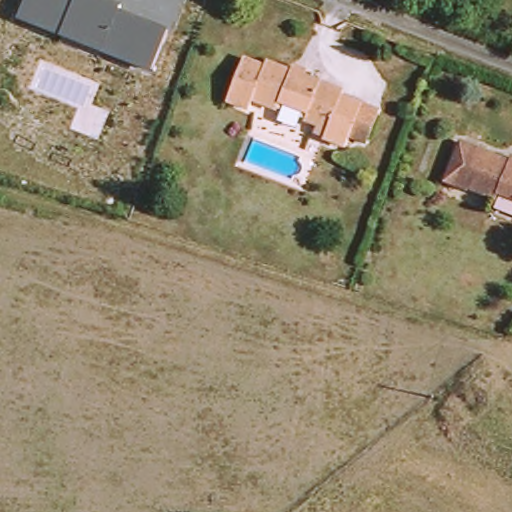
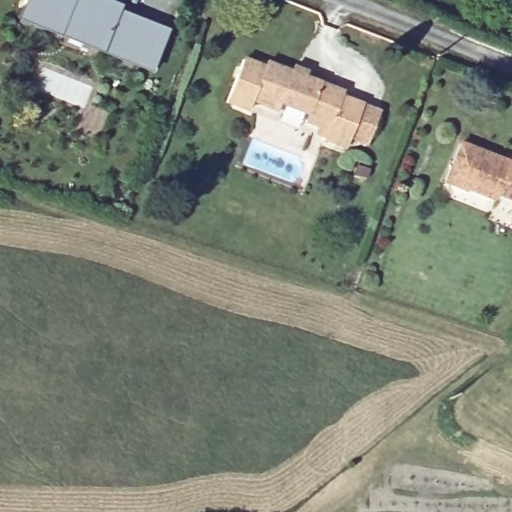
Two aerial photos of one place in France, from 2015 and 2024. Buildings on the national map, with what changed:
unchanged [(122,7),(120,14),(169,32),(152,74),(19,21),(26,0),(104,0),(122,7)]
unchanged [(378,144),(360,137),(357,145),(312,128),(315,120),(294,111),(290,120),(275,114),(278,107),(261,101),(258,108),(239,100),(255,56),(275,64),(277,60),(355,89),(354,94),(374,101),(392,108),(378,144)]
unchanged [(508,198),(480,188),(479,190),(457,182),(472,142),(482,146),(512,157),(512,194),(510,193),(508,198)]

